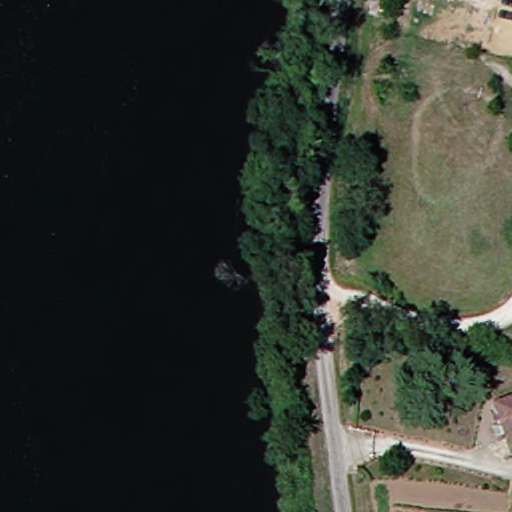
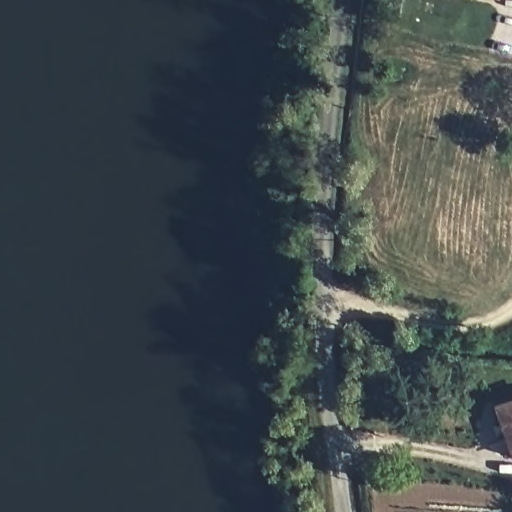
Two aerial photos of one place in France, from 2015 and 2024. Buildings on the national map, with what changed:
unchanged [(512,455),(497,411),(512,406),(512,455)]

